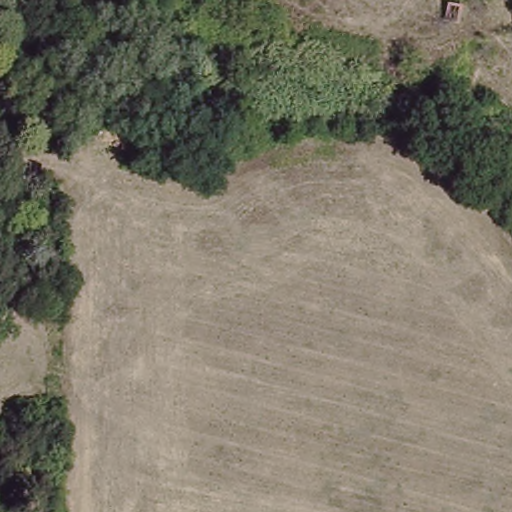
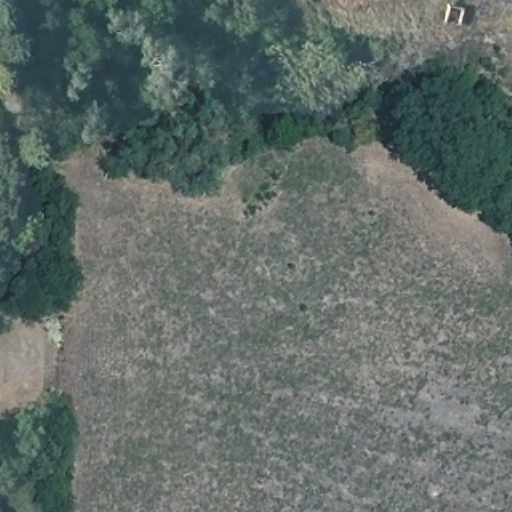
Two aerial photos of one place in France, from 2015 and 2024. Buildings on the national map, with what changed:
unchanged [(466,12),(463,29),(449,27),(452,9),(466,12)]

